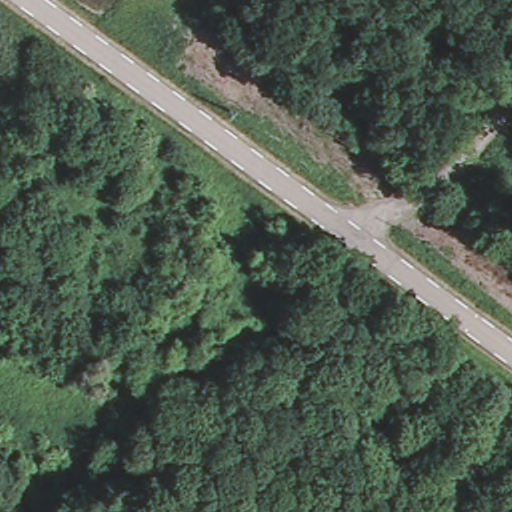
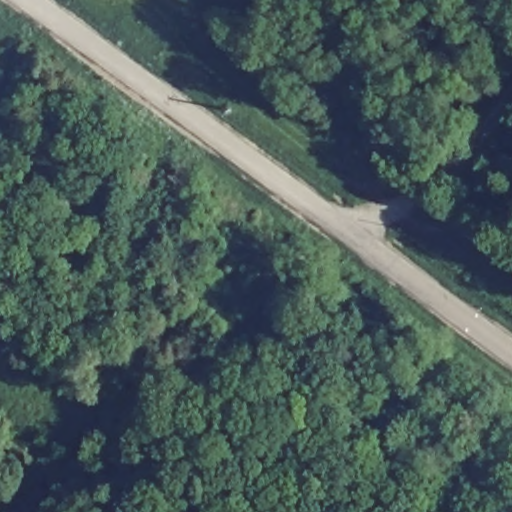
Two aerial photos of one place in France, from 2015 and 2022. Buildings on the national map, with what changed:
unchanged [(276,504),(282,512),(263,512),(276,504)]

